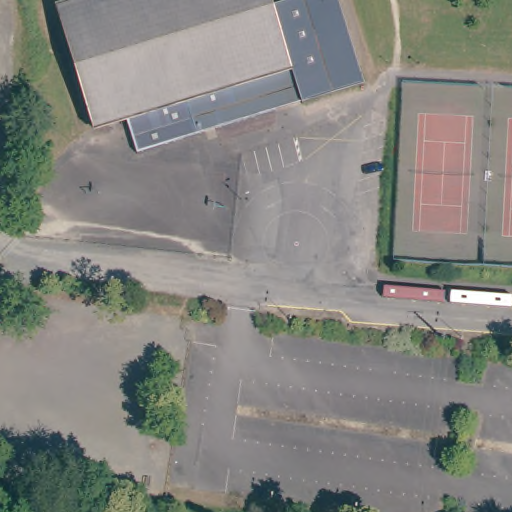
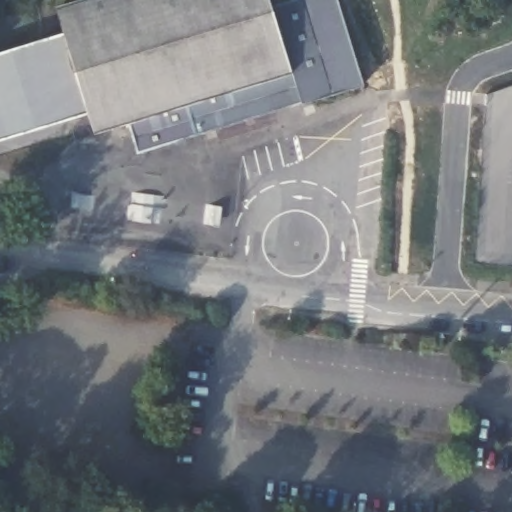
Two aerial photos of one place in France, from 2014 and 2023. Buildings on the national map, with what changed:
unchanged [(363,82),(304,101),(303,99),(141,149),(130,116),(96,126),(60,9),(90,0),(338,0),(363,82)]
new [(0,140),(0,51),(67,32),(92,112),(0,140)]

